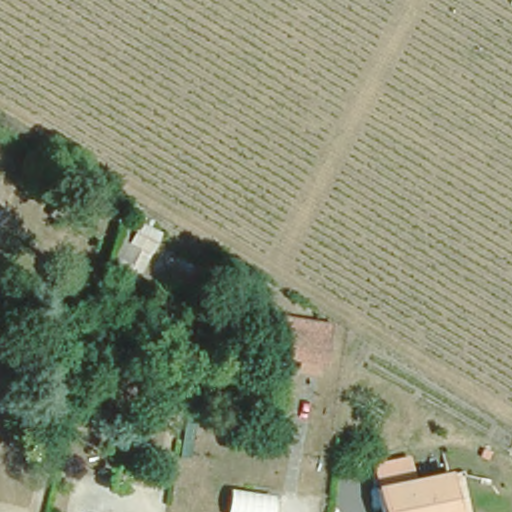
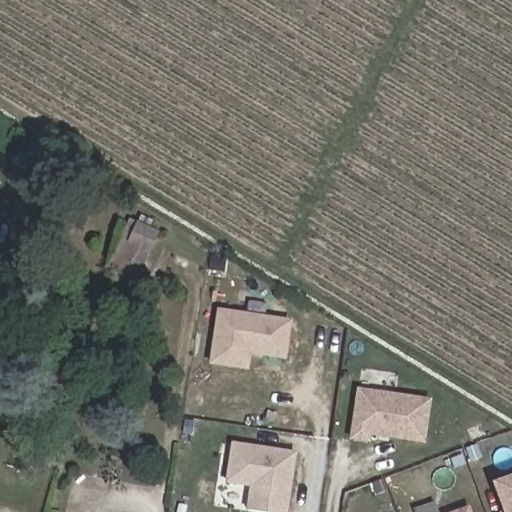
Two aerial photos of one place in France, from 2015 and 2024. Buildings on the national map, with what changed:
unchanged [(128,264),(106,257),(97,255),(108,214),(118,217),(139,224),(128,264)]
new [(221,312),(291,324),(285,360),(251,355),(249,370),(213,365),(221,312)]
demolished [(330,328),(326,356),(277,348),(281,321),(330,328)]
new [(370,443),(348,440),(356,388),(430,398),(424,443),(371,436),(370,443)]
new [(235,446),(296,456),(287,512),(249,512),(253,487),(228,483),(235,446)]
new [(489,482),(512,474),(512,512),(501,512),(489,482)]
demolished [(404,481),(451,478),(453,512),(383,512),(382,482),(404,481)]
new [(468,504),(472,512),(448,512),(468,504)]

